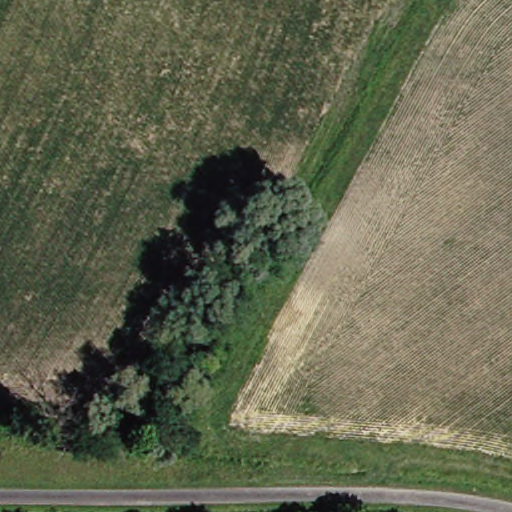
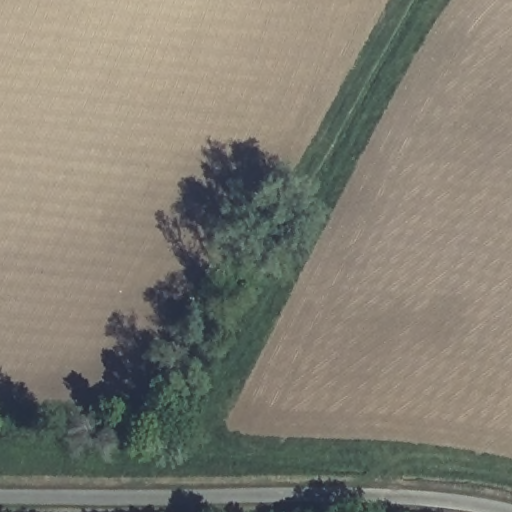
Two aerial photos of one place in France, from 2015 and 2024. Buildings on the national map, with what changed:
[]

